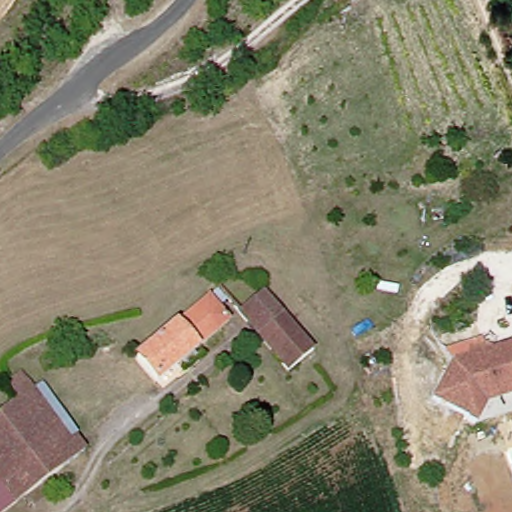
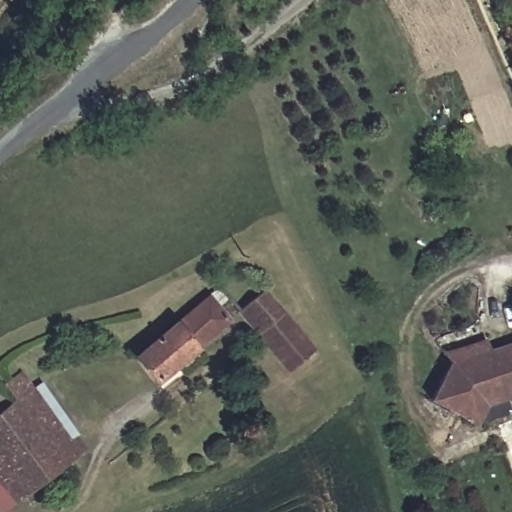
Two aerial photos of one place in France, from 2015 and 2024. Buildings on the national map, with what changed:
unchanged [(180,376),(173,368),(152,386),(132,362),(205,300),(215,290),(225,302),(215,312),(226,325),(189,356),(195,363),(180,376)]
unchanged [(314,350),(288,371),(238,311),(265,290),(284,313),(314,350)]
unchanged [(486,400),(477,420),(470,416),(432,398),(446,370),(512,355),(512,391),(486,400)]
unchanged [(0,396),(0,388),(17,376),(30,392),(34,389),(80,456),(10,508),(5,512),(0,512),(0,414),(8,407),(0,396)]

